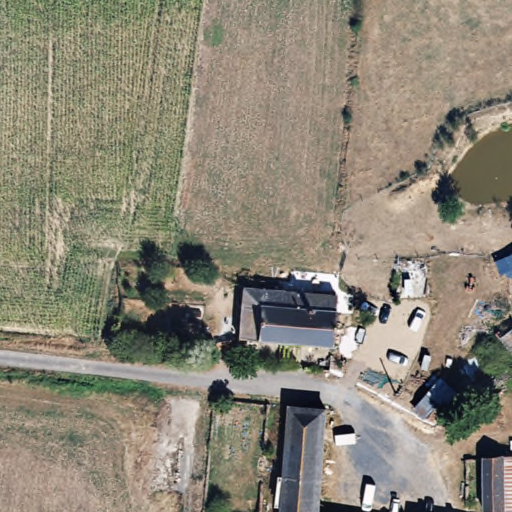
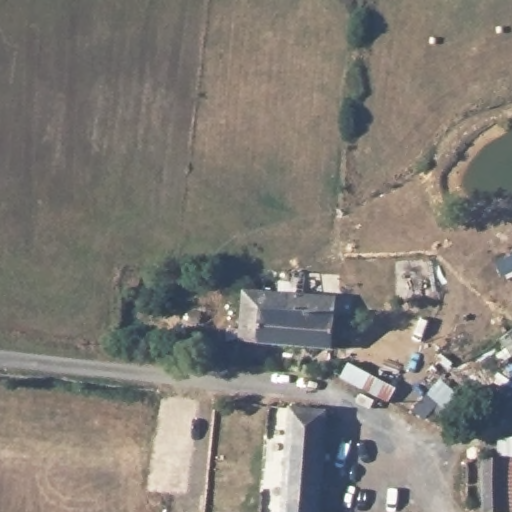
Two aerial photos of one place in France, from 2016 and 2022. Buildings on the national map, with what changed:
unchanged [(236,340),(239,306),(240,288),(283,291),(287,290),(330,294),(327,347),(283,344),(258,342),(236,340)]
unchanged [(235,394),(235,405),(220,404),(220,393),(235,394)]
unchanged [(282,512),(258,512),(271,404),(293,406),(282,512)]
unchanged [(320,512),(282,512),(293,406),(328,410),(320,512)]
unchanged [(510,458),(508,506),(471,505),(473,457),(510,458)]
unchanged [(512,458),(512,507),(508,506),(510,458),(512,458)]

